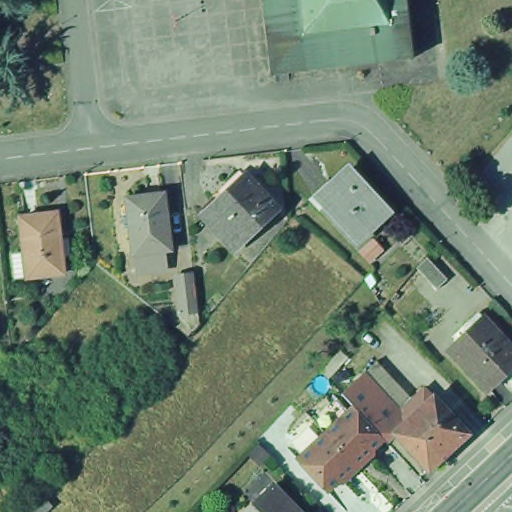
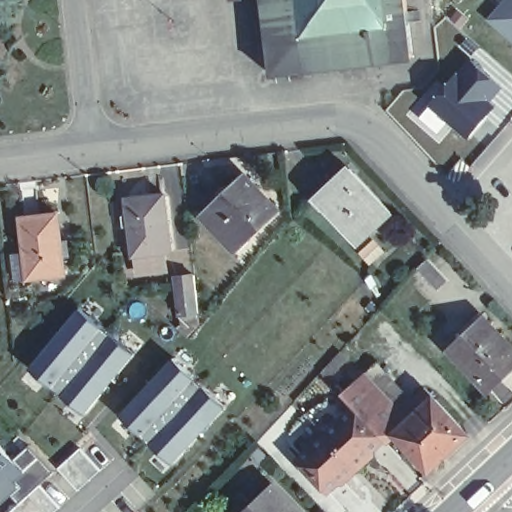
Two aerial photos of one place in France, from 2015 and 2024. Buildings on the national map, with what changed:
unchanged [(412,57),(269,73),(261,0),(405,0),(412,57)]
new [(512,38),(488,17),(502,0),(512,0),(512,38)]
new [(501,86),(486,101),(492,107),(465,139),(426,106),(467,56),(501,86)]
unchanged [(333,187),(350,172),(354,176),(389,216),(354,246),(315,203),(333,187)]
unchanged [(198,214),(227,187),(241,173),(248,180),(273,206),(229,247),(198,214)]
unchanged [(133,255),(131,237),(128,238),(123,181),(159,177),(166,233),(158,234),(161,252),(133,255)]
unchanged [(9,257),(20,255),(15,220),(51,216),(58,276),(23,280),(11,281),(9,257)]
unchanged [(173,296),(171,296),(166,259),(187,256),(191,294),(191,304),(175,306),(173,296)]
unchanged [(426,256),(447,278),(436,288),(415,266),(426,256)]
new [(136,351),(87,410),(34,365),(83,306),(136,351)]
unchanged [(458,358),(483,335),(478,329),(487,321),(493,326),(512,348),(512,383),(495,398),(458,358)]
new [(227,407),(174,464),(124,412),(173,358),(227,407)]
unchanged [(403,404),(407,401),(421,388),(431,399),(464,435),(425,470),(392,435),(383,444),(381,441),(324,493),(293,460),(349,408),(339,396),(360,376),(361,378),(381,399),(394,412),(403,404)]
new [(21,470),(0,491),(0,445),(21,470)]
new [(98,469),(78,490),(56,468),(78,448),(98,469)]
new [(53,512),(9,512),(37,484),(57,508),(53,512)]
unchanged [(300,512),(249,512),(274,486),(300,512)]

